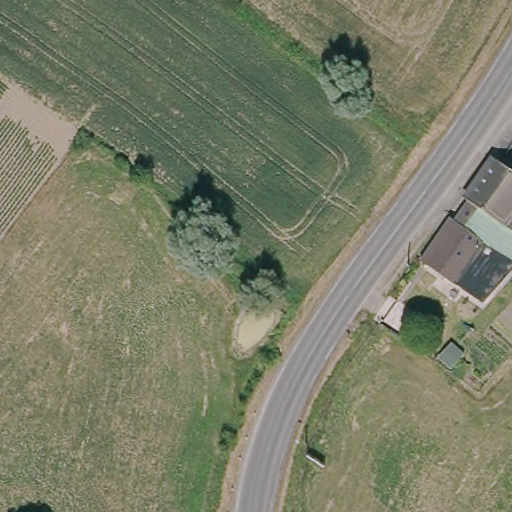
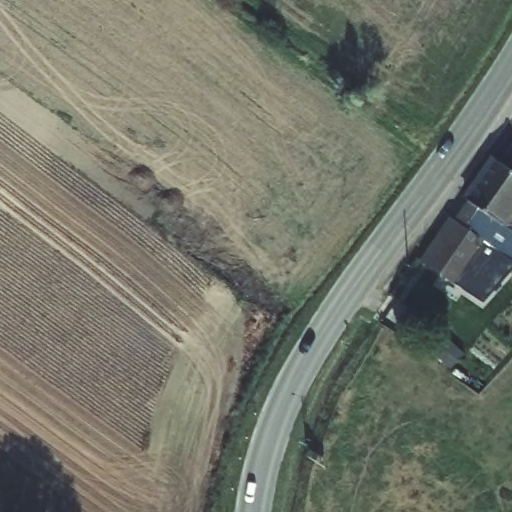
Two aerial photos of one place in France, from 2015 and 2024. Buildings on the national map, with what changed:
unchanged [(490,246),(457,217),(453,214),(496,154),(512,169),(512,209),(498,228),(512,241),(512,272),(501,283),(491,273),(504,257),(490,246)]
unchanged [(490,246),(459,286),(424,260),(457,217),(490,246)]

